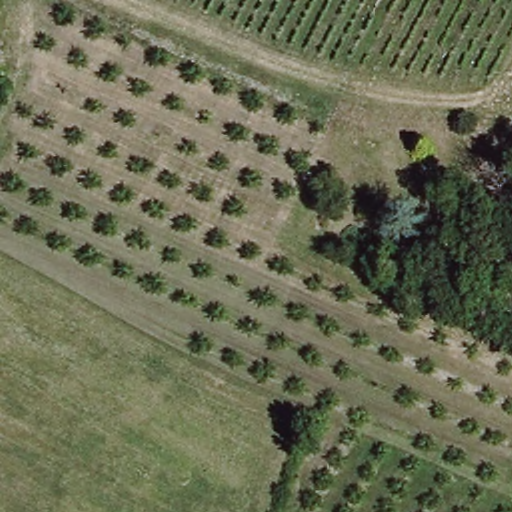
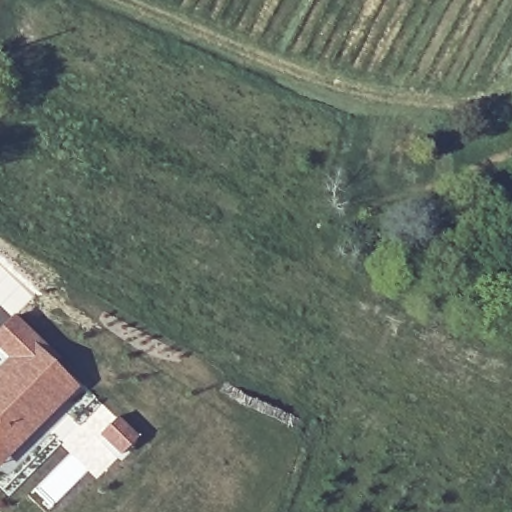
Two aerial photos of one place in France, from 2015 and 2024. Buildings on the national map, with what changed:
new [(15,312),(11,316),(0,305),(0,259),(35,295),(15,312)]
new [(0,356),(0,326),(11,316),(15,312),(42,343),(40,345),(79,387),(0,464),(0,360),(1,358),(0,356)]
new [(116,415),(138,437),(120,456),(97,435),(116,415)]

